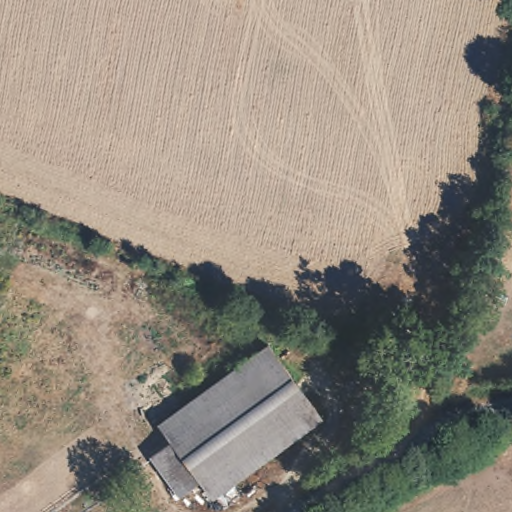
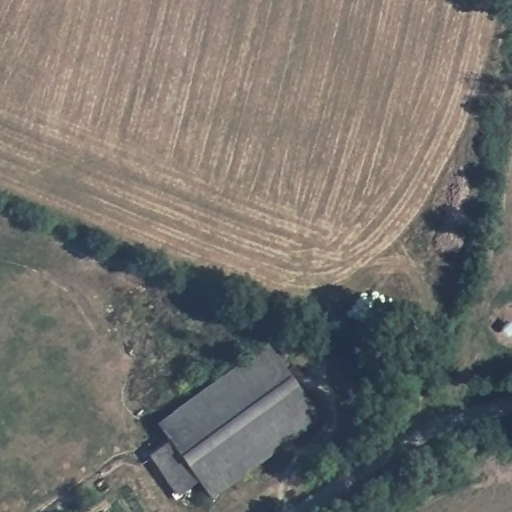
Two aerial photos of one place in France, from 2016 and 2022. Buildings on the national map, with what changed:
unchanged [(214,497),(200,481),(181,494),(152,456),(172,440),(160,423),(267,346),(321,417),(214,497)]

